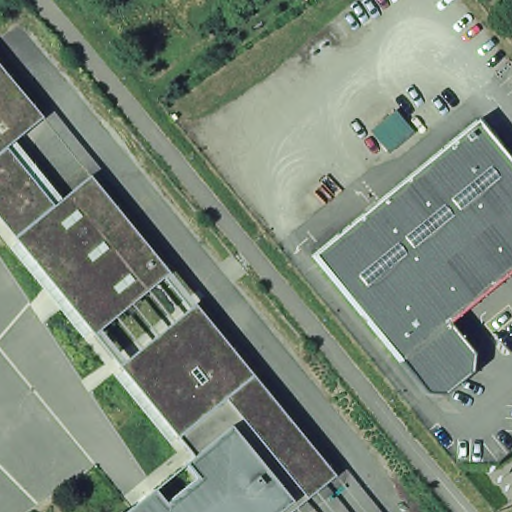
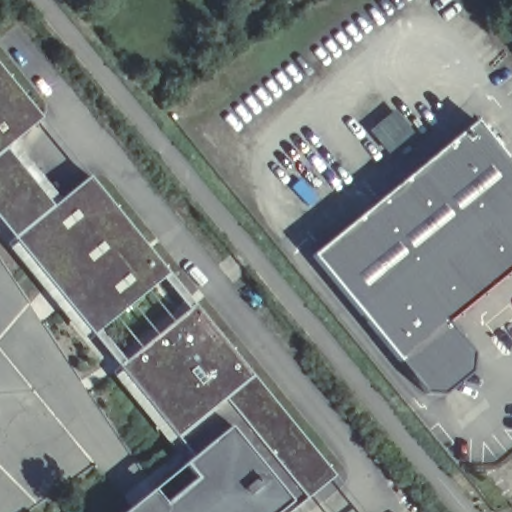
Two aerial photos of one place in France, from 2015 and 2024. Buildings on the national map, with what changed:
unchanged [(37,113),(7,138),(1,142),(48,201),(50,199),(85,171),(106,197),(147,247),(160,263),(164,268),(104,317),(88,330),(77,315),(36,265),(8,232),(11,229),(22,220),(15,211),(7,218),(0,211),(0,67),(37,113)]
unchanged [(512,187),(512,271),(438,332),(451,348),(463,363),(462,382),(439,401),(433,405),(415,403),(405,392),(387,369),(350,325),(301,265),(319,250),(465,130),(510,185),(512,187)]
unchanged [(284,413),(306,440),(332,472),(335,475),(319,489),(291,512),(186,512),(217,487),(193,457),(132,382),(119,366),(156,336),(161,342),(171,334),(166,328),(195,304),(201,311),(284,413)]
unchanged [(186,512),(172,512),(165,503),(195,478),(184,464),(193,457),(217,487),(186,512)]
unchanged [(165,503),(172,512),(125,512),(153,489),(165,503)]

